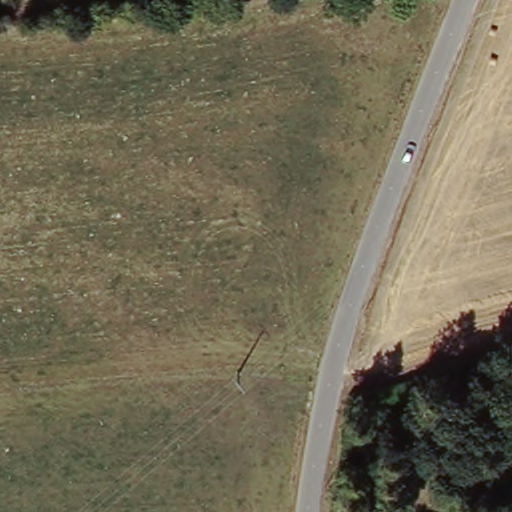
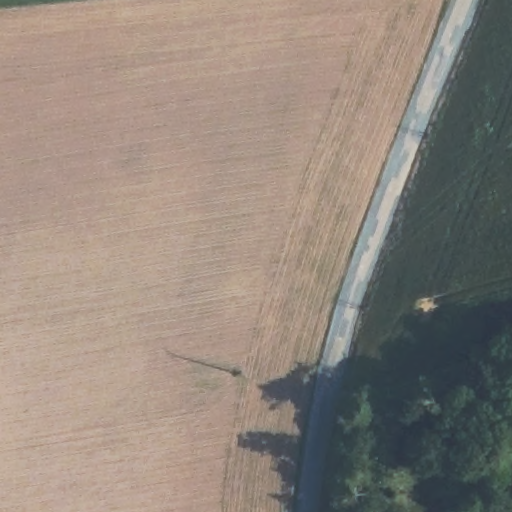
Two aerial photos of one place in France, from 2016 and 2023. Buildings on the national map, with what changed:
unchanged [(512,458),(512,471),(508,460),(512,458)]

